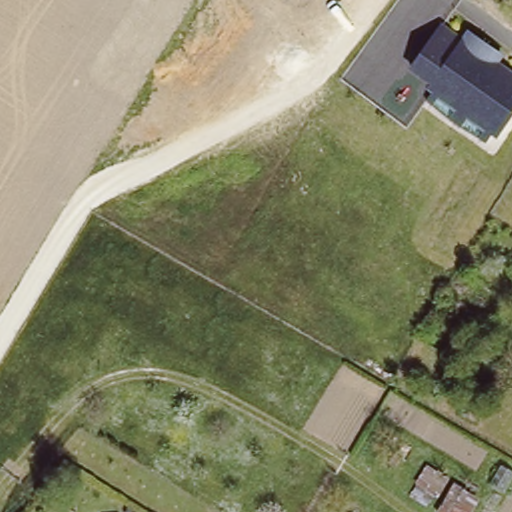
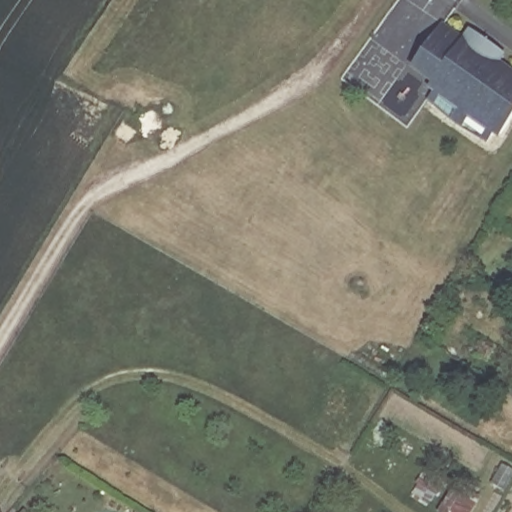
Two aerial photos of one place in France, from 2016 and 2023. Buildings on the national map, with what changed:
unchanged [(463,34),(470,26),(502,52),(497,59),(512,69),(512,116),(496,138),(407,71),(445,21),(463,34)]

